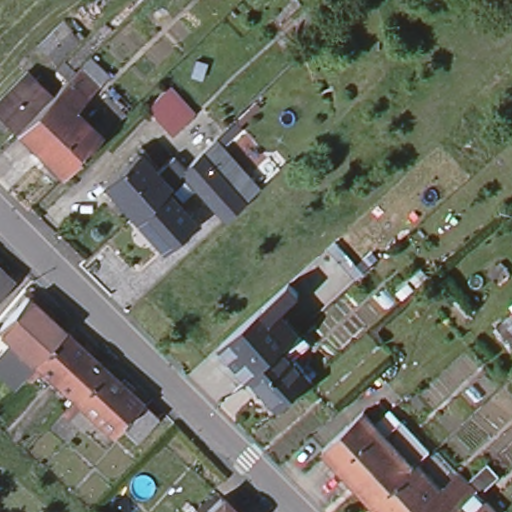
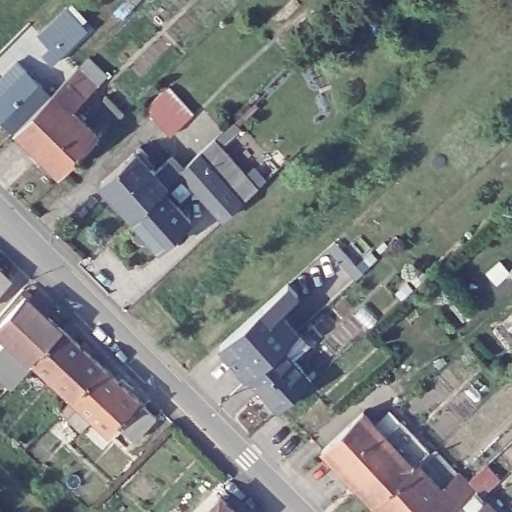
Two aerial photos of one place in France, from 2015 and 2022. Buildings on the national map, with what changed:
new [(41,55),(50,46),(37,32),(67,5),(90,27),(52,65),(41,55)]
demolished [(57,36),(65,27),(75,37),(52,60),(42,50),(57,36)]
unchanged [(70,66),(87,83),(63,107),(26,145),(9,127),(70,66)]
unchanged [(40,90),(5,125),(0,121),(0,87),(19,69),(40,90)]
unchanged [(170,135),(157,121),(144,108),(169,84),(182,97),(195,110),(170,135)]
unchanged [(63,107),(89,133),(51,171),(26,145),(63,107)]
unchanged [(172,239),(159,251),(129,219),(100,185),(137,151),(146,160),(142,164),(161,184),(175,171),(177,174),(182,170),(172,160),(198,136),(207,146),(210,143),(255,192),(222,223),(197,196),(179,214),(189,224),(197,233),(180,248),(172,239)]
unchanged [(0,287),(0,271),(8,278),(0,287)]
unchanged [(287,280),(299,293),(282,310),(311,341),(293,355),(282,342),(245,372),(219,342),(287,280)]
unchanged [(39,366),(29,377),(22,371),(32,361),(31,360),(14,378),(2,366),(0,367),(0,342),(5,336),(0,331),(0,318),(24,292),(27,290),(43,305),(40,307),(62,327),(101,363),(139,398),(108,430),(78,402),(65,416),(59,410),(71,396),(39,366)]
unchanged [(282,345),(312,378),(277,409),(247,376),(282,345)]
unchanged [(156,415),(135,437),(122,426),(144,403),(156,415)]
unchanged [(317,451),(357,412),(379,437),(386,430),(395,421),(426,455),(430,451),(452,475),(459,481),(481,460),(494,474),(472,495),(487,512),(374,512),(370,507),(317,451)]
unchanged [(243,512),(197,512),(220,489),(243,512)]

